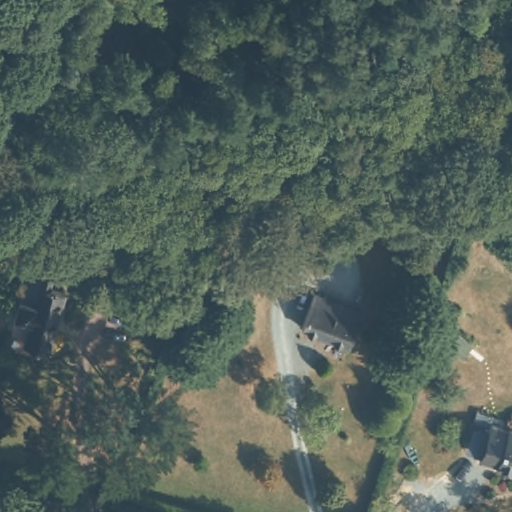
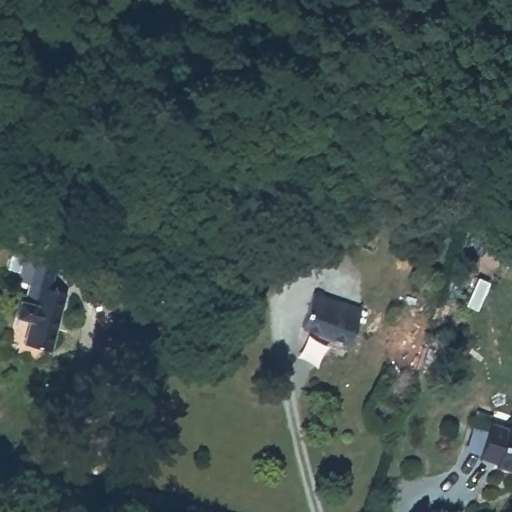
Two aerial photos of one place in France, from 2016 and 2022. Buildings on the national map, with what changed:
unchanged [(62,255),(55,285),(66,288),(49,350),(20,341),(27,318),(15,314),(19,297),(25,299),(30,282),(20,280),(30,246),(62,255)]
unchanged [(295,327),(308,292),(327,298),(358,310),(354,321),(346,345),(295,327)]
unchanged [(512,468),(491,462),(492,458),(477,453),(490,421),(505,426),(507,422),(512,424),(512,468)]

